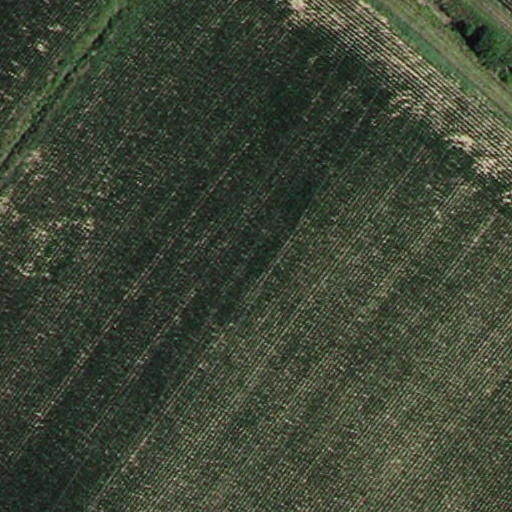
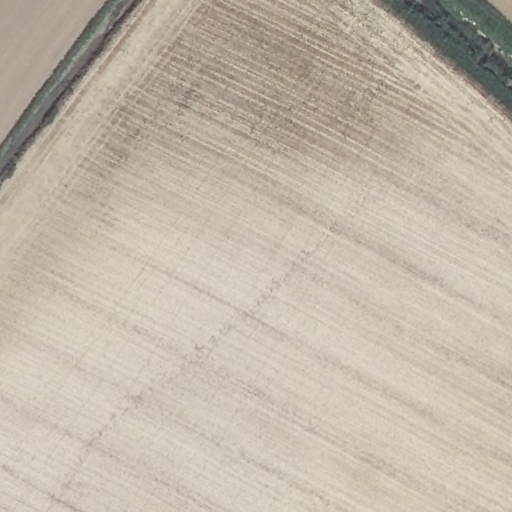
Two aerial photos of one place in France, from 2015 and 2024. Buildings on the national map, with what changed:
[]

